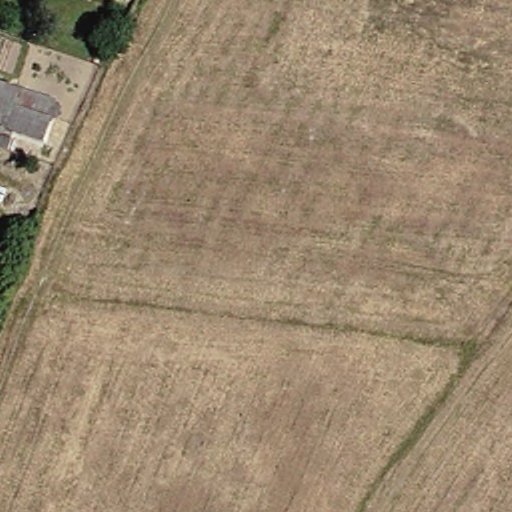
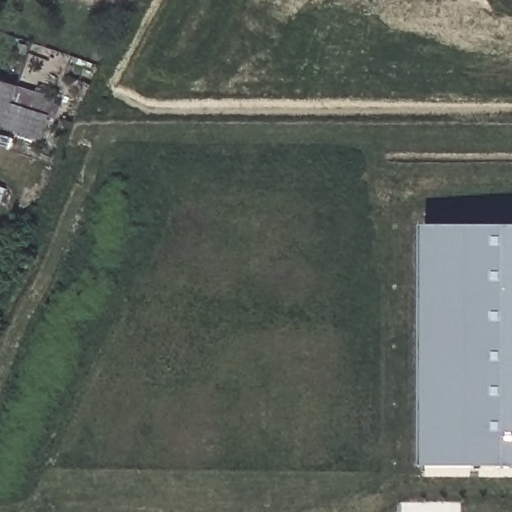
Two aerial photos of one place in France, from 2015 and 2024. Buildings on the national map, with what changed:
unchanged [(0,117),(0,76),(18,81),(55,94),(54,98),(62,101),(58,113),(51,111),(44,134),(6,121),(0,117)]
unchanged [(2,142),(0,142),(0,129),(11,133),(7,144),(2,142)]
unchanged [(2,202),(0,201),(0,186),(6,189),(2,202)]
new [(426,468),(425,226),(512,225),(512,467),(426,468)]

